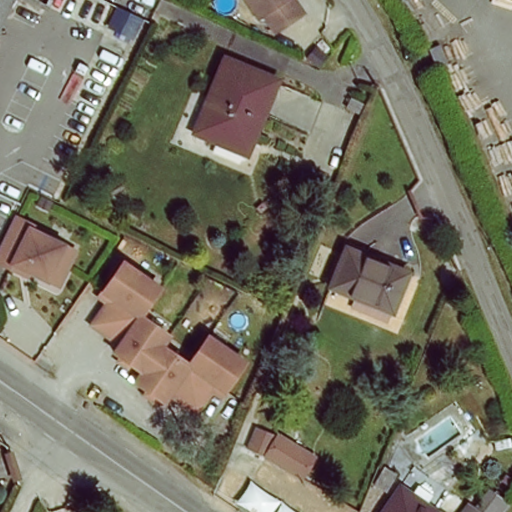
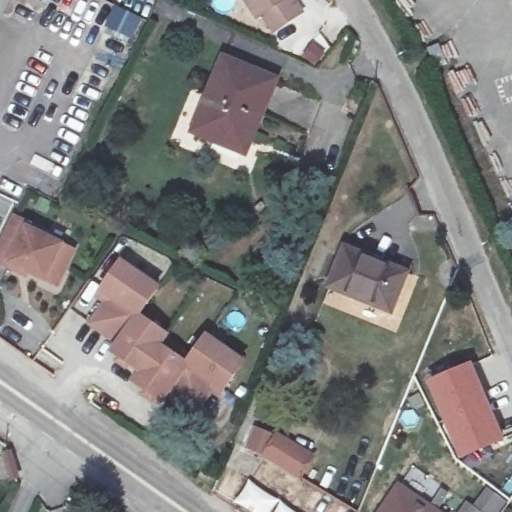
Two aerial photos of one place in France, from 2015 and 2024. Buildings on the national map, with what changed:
unchanged [(0,22),(0,0),(10,0),(0,22)]
unchanged [(44,5),(14,0),(46,0),(44,5)]
unchanged [(271,32),(248,0),(297,0),(304,10),(271,32)]
unchanged [(276,82),(252,144),(225,130),(219,144),(197,135),(227,59),(276,82)]
unchanged [(56,283),(0,259),(0,245),(13,217),(77,246),(56,283)]
unchanged [(406,271),(390,312),(351,298),(353,292),(330,283),(344,247),(406,271)]
unchanged [(226,398),(218,396),(206,407),(185,398),(169,411),(130,382),(136,372),(110,355),(114,346),(86,325),(102,302),(97,297),(122,260),(165,287),(145,313),(169,329),(164,338),(187,355),(205,330),(250,365),(226,398)]
new [(473,361),(505,440),(460,460),(426,381),(473,361)]
unchanged [(258,425),(318,457),(305,477),(247,447),(258,425)]
unchanged [(368,490),(384,465),(399,473),(388,493),(384,492),(375,507),(364,501),(368,490)]
unchanged [(456,512),(375,512),(398,477),(456,512)]
unchanged [(492,512),(456,512),(467,497),(492,512)]

